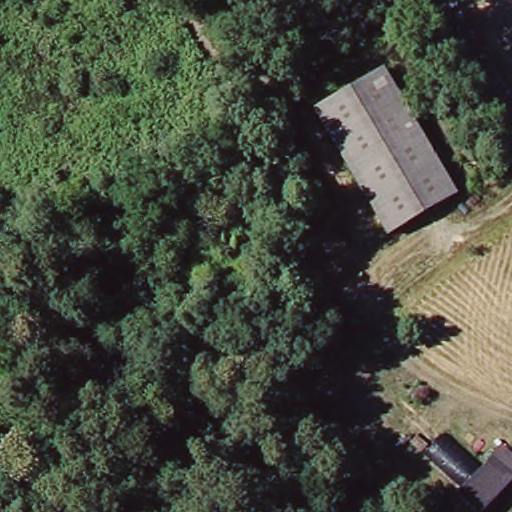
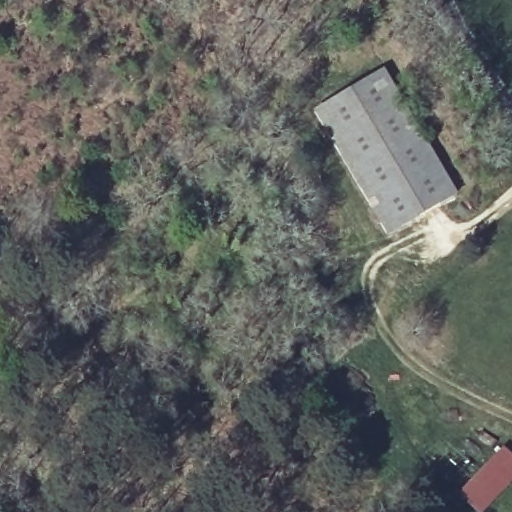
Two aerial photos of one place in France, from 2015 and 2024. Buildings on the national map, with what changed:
unchanged [(384,66),(458,190),(391,228),(313,108),(384,66)]
unchanged [(502,443),(512,452),(512,479),(480,511),(458,492),(502,443)]

